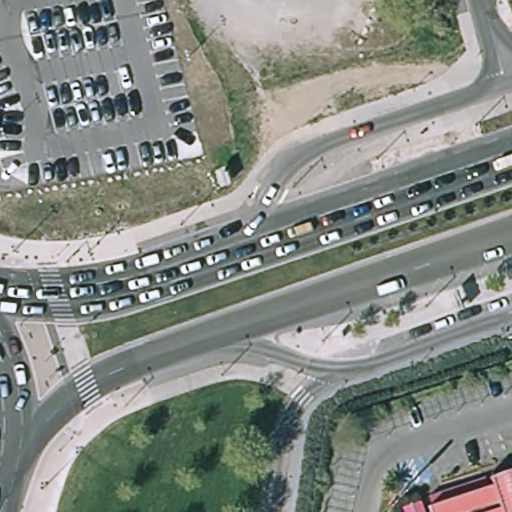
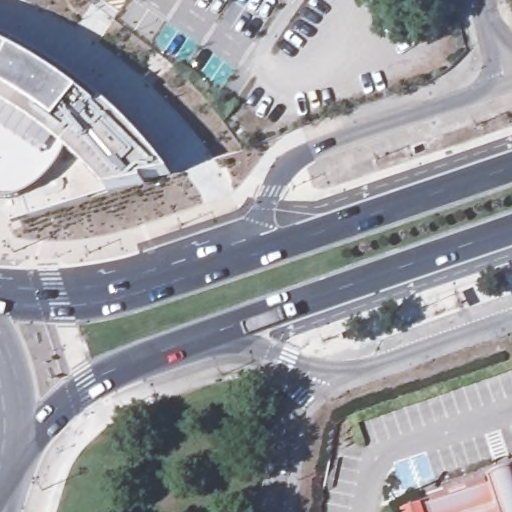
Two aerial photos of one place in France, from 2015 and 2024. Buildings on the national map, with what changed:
new [(84,0),(88,0),(87,2),(84,0)]
new [(68,76),(103,102),(121,120),(156,156),(173,178),(144,182),(146,187),(108,194),(99,183),(8,222),(0,213),(0,39),(33,55),(68,76)]
unchanged [(487,486),(484,478),(512,469),(512,512),(425,512),(423,507),(487,486)]

